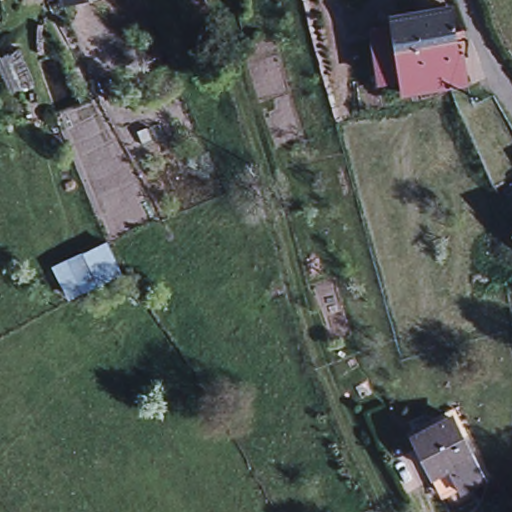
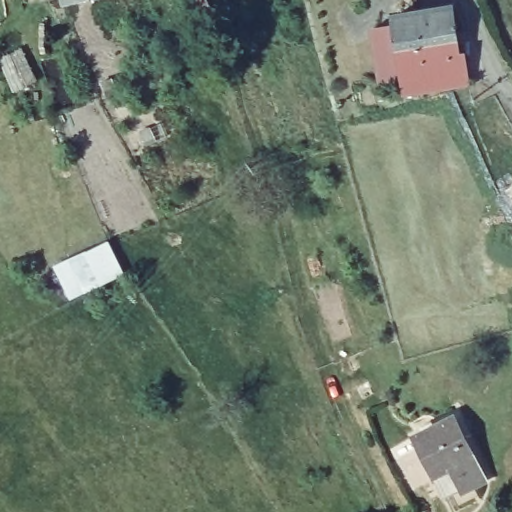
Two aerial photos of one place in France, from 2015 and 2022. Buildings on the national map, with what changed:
unchanged [(402,85),(400,70),(394,32),(392,23),(447,14),(450,30),(453,30),(454,33),(451,33),(455,58),(462,57),(468,88),(440,93),(405,100),(402,85)]
unchanged [(402,85),(380,89),(372,35),(394,32),(400,70),(402,85)]
unchanged [(37,86),(12,98),(0,71),(0,56),(22,48),(37,86)]
unchanged [(122,270),(75,292),(62,258),(107,240),(122,270)]
unchanged [(467,494),(450,467),(436,475),(427,459),(415,438),(452,418),(464,439),(472,454),(487,481),(467,494)]

